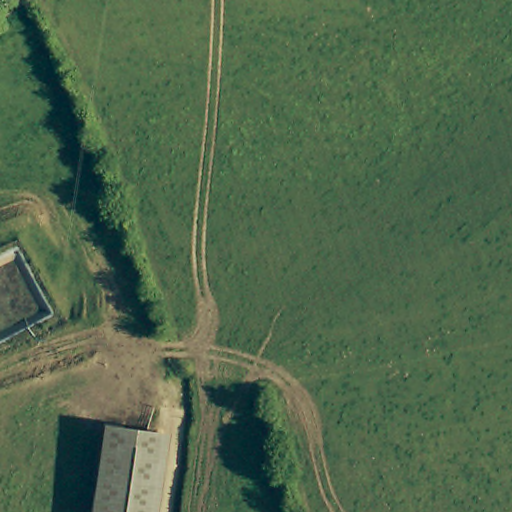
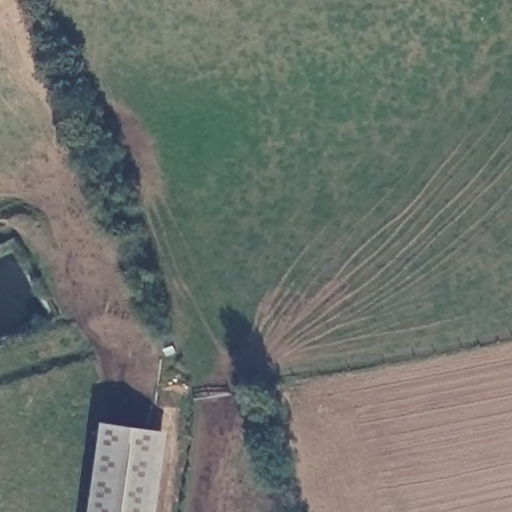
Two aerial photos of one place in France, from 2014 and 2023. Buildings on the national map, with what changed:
unchanged [(106,430),(106,428),(159,435),(146,512),(95,512),(107,442),(106,430)]

